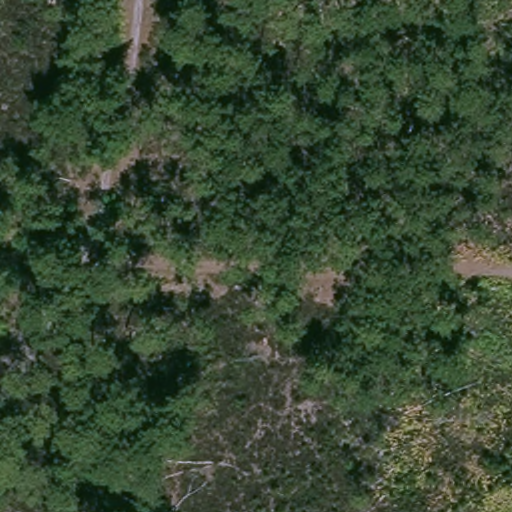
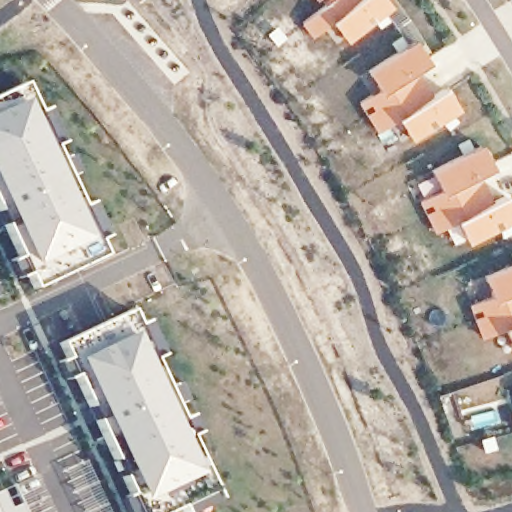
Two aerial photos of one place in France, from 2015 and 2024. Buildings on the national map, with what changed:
new [(391,7),(347,43),(330,21),(314,38),(303,23),(329,3),(326,0),(386,0),(391,7)]
new [(429,62),(419,68),(434,94),(446,86),(460,111),(411,142),(396,118),(377,133),(358,102),(377,87),(366,70),(414,39),(429,62)]
new [(105,256),(34,290),(0,218),(0,92),(23,81),(105,256)]
new [(480,174),(494,200),(507,194),(512,204),(512,221),(467,244),(455,220),(436,234),(420,202),(439,188),(430,169),(482,143),(494,168),(480,174)]
new [(481,339),(469,305),(491,293),(483,274),(512,262),(512,350),(503,328),(481,339)]
new [(170,512),(138,512),(57,343),(129,310),(215,491),(170,512)]
new [(14,484),(27,512),(0,512),(0,490),(14,484)]

